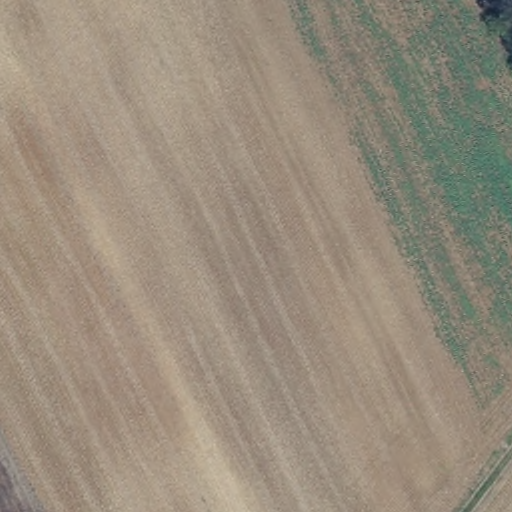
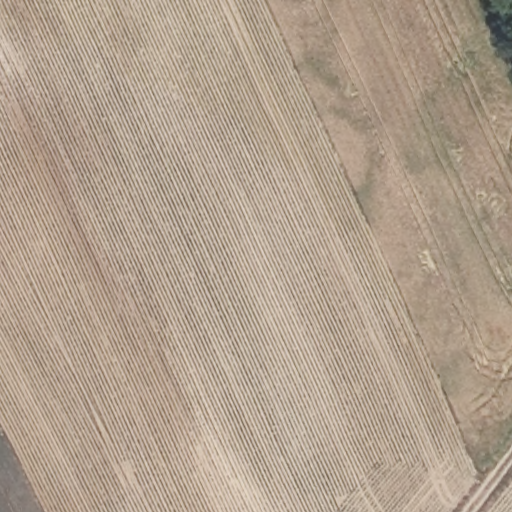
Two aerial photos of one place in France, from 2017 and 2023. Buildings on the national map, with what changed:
[]

